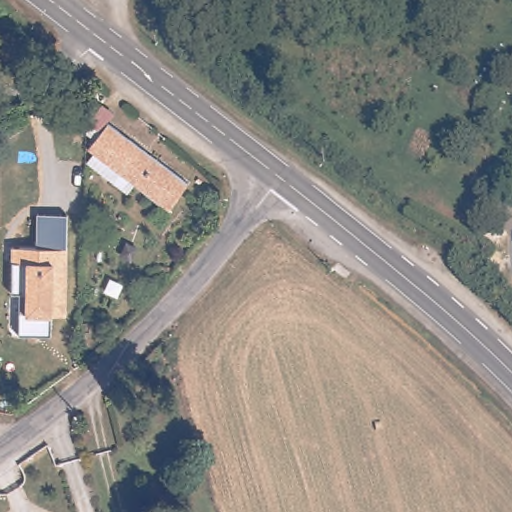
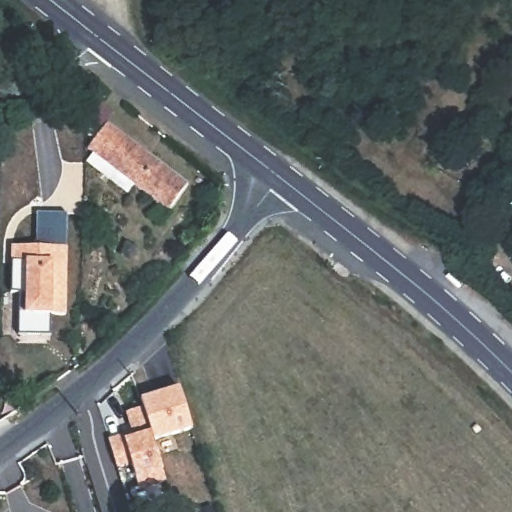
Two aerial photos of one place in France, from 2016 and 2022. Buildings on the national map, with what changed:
unchanged [(86,161),(92,151),(87,147),(107,121),(186,184),(166,209),(134,184),(127,194),(86,161)]
unchanged [(69,213),(68,314),(51,314),(52,333),(19,332),(19,298),(9,298),(9,245),(35,244),(35,213),(69,213)]
new [(181,386),(193,427),(155,439),(145,406),(142,397),(181,386)]
new [(134,431),(127,411),(145,406),(155,439),(168,479),(140,488),(132,462),(118,467),(109,439),(125,433),(134,431)]

